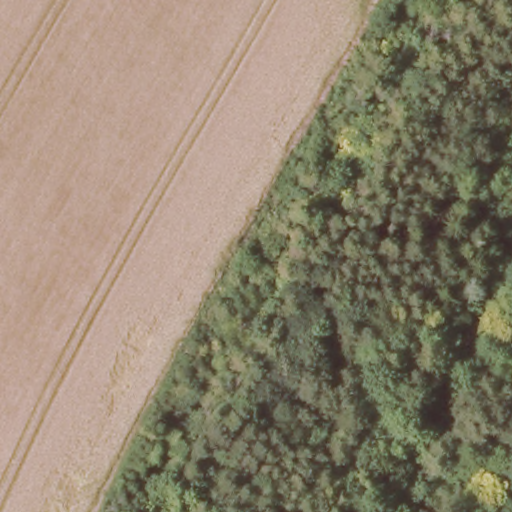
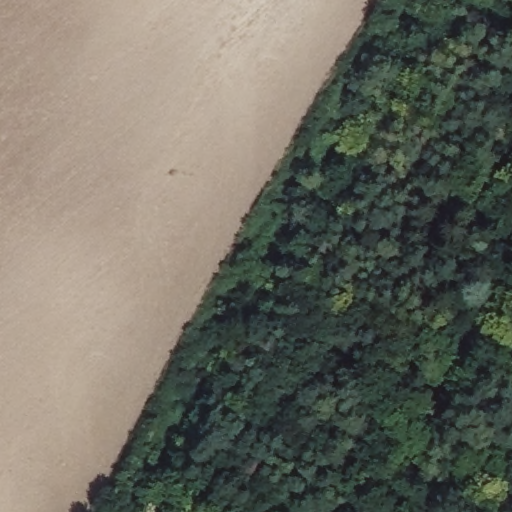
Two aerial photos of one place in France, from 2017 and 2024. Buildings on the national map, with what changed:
unchanged [(475,325),(464,363),(445,356),(455,318),(475,325)]

